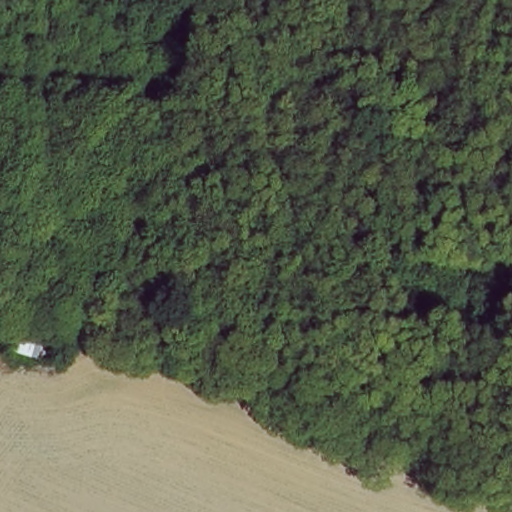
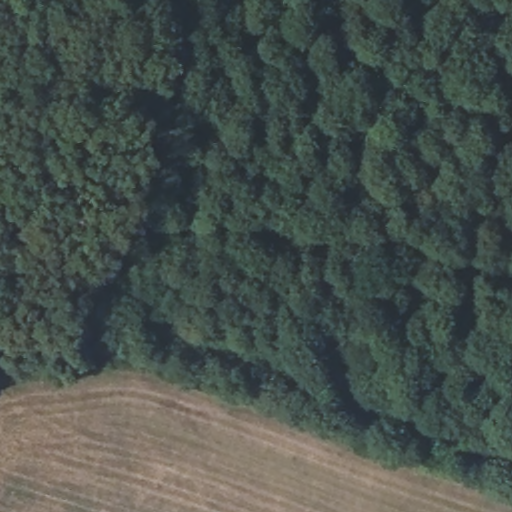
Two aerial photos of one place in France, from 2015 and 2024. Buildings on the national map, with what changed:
unchanged [(29,320),(63,331),(51,364),(15,356),(29,320)]

